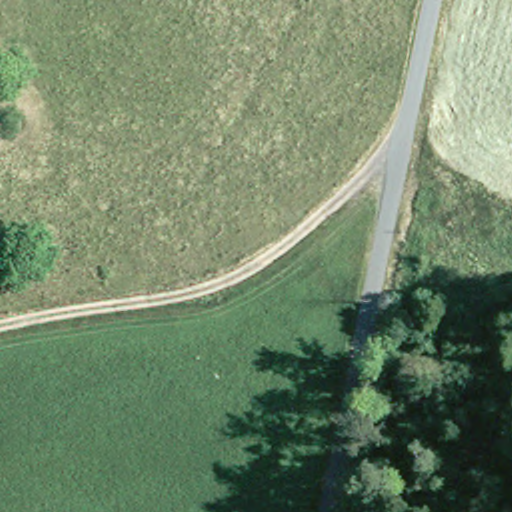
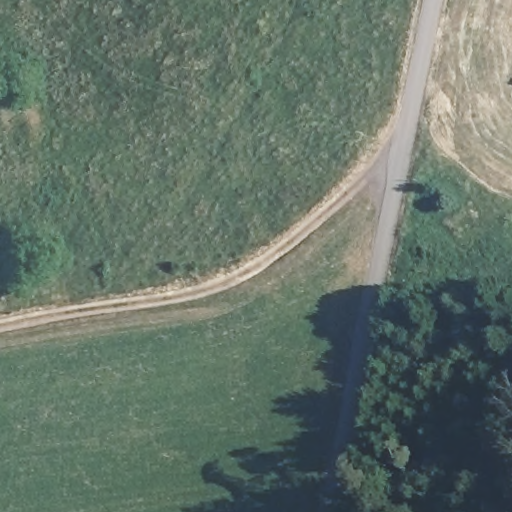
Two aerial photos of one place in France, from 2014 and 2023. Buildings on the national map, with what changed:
[]

